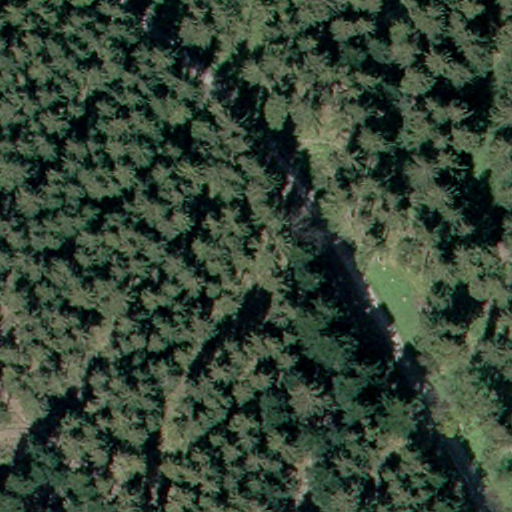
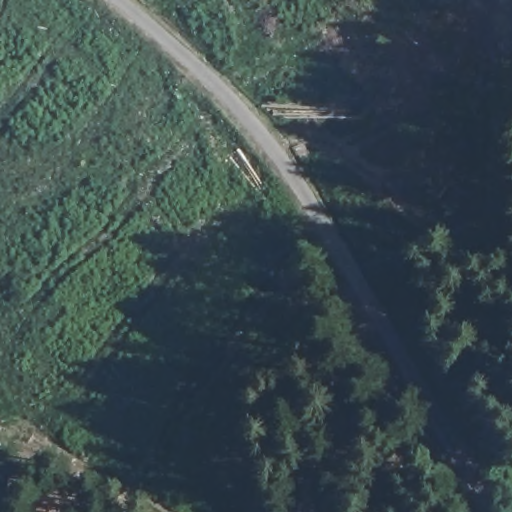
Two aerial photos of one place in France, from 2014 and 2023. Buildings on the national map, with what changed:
[]

